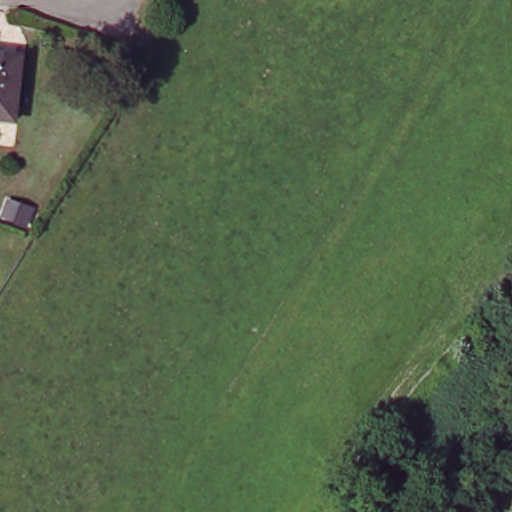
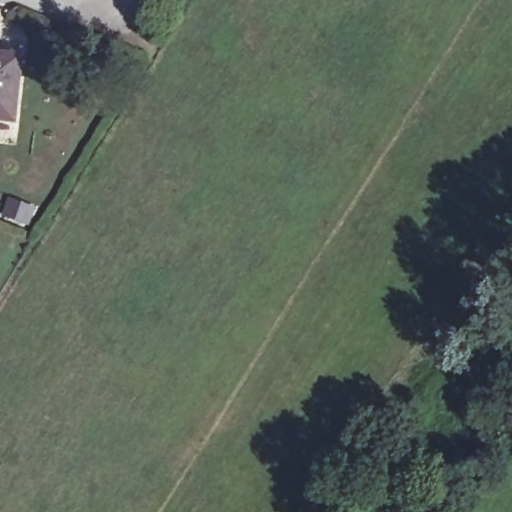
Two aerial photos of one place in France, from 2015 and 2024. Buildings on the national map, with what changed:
unchanged [(25,53),(17,117),(0,115),(0,50),(25,53)]

